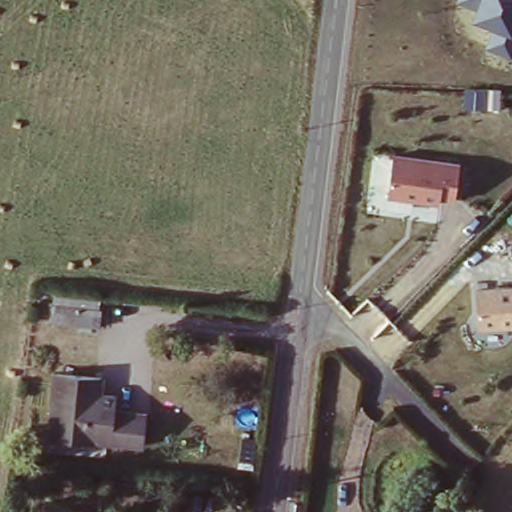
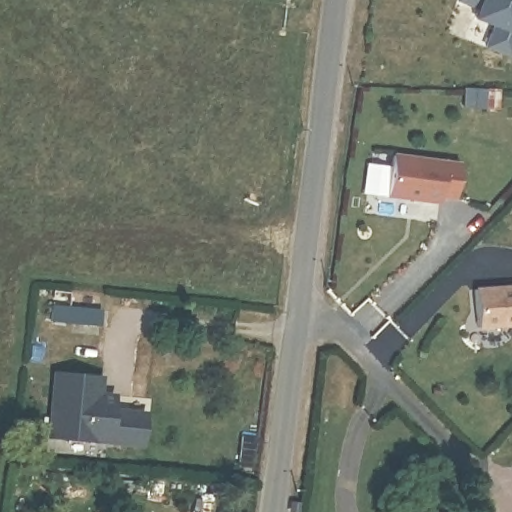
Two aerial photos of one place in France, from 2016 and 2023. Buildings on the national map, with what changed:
unchanged [(510,55),(488,47),(496,27),(473,17),(479,7),(460,0),(512,0),(512,51),(510,55)]
unchanged [(459,161),(456,205),(392,196),(396,153),(459,161)]
unchanged [(512,284),(512,326),(477,328),(474,287),(512,284)]
unchanged [(49,310),(99,316),(98,333),(48,329),(49,310)]
unchanged [(145,450),(123,449),(43,440),(50,375),(96,380),(94,393),(112,395),(110,408),(127,411),(147,413),(145,450)]

